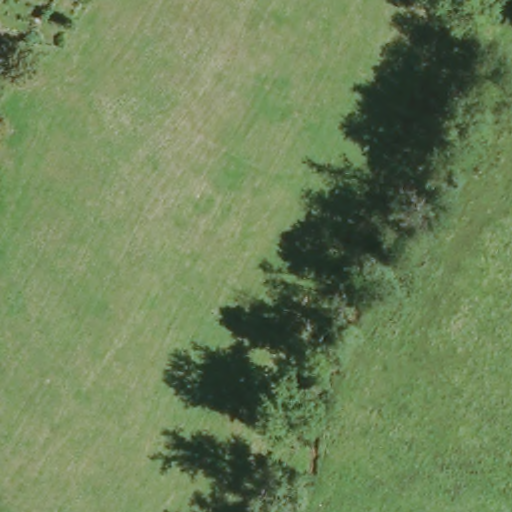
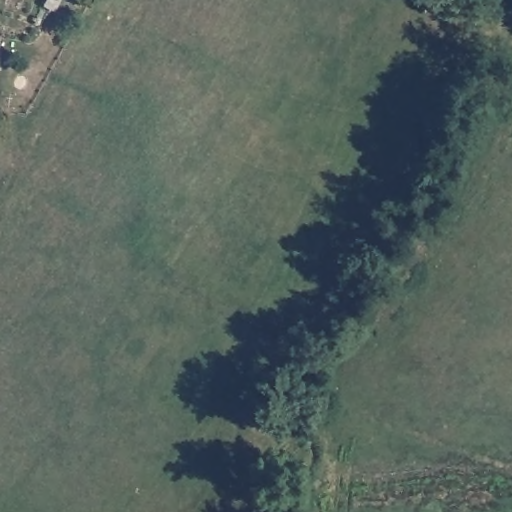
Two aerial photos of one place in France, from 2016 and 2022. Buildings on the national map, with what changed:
[]

